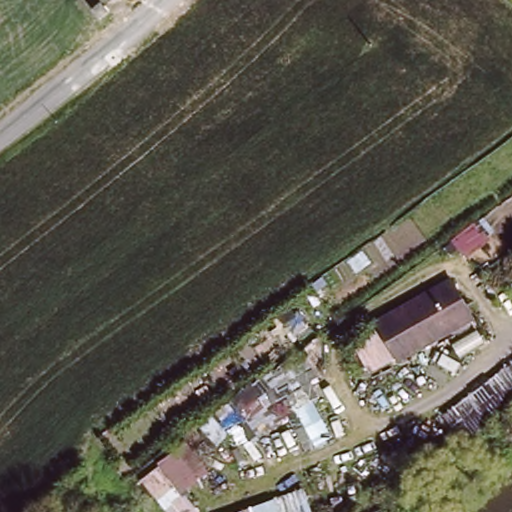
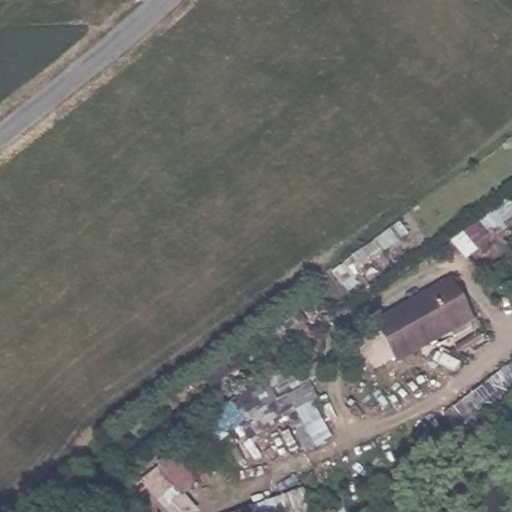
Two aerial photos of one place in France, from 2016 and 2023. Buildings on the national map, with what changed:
unchanged [(452,283),(474,323),(397,365),(376,326),(452,283)]
unchanged [(239,411),(271,390),(267,382),(300,364),(304,372),(314,368),(318,377),(298,387),(308,403),(312,400),(333,437),(316,446),(295,410),(242,445),(230,431),(212,446),(198,428),(230,401),(239,411)]
unchanged [(189,438),(212,469),(183,492),(198,512),(169,512),(142,478),(158,463),(189,438)]
unchanged [(272,500),(304,490),(310,512),(237,512),(272,500)]

